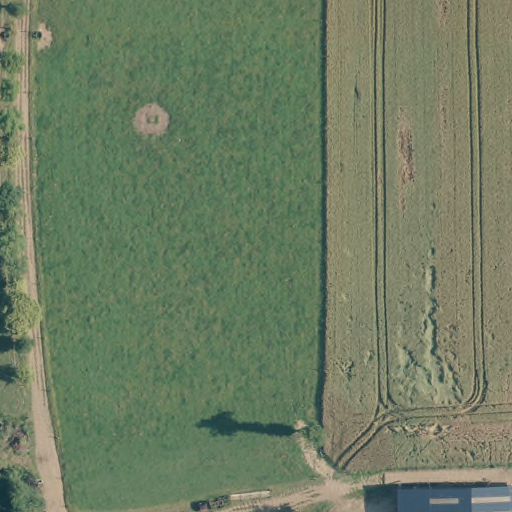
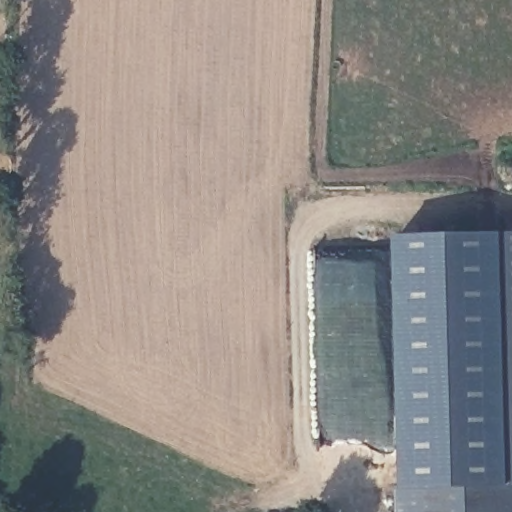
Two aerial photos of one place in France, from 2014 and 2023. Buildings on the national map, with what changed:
new [(397,238),(512,234),(512,485),(404,488),(397,238)]
unchanged [(398,488),(512,485),(512,512),(399,512),(398,488)]

